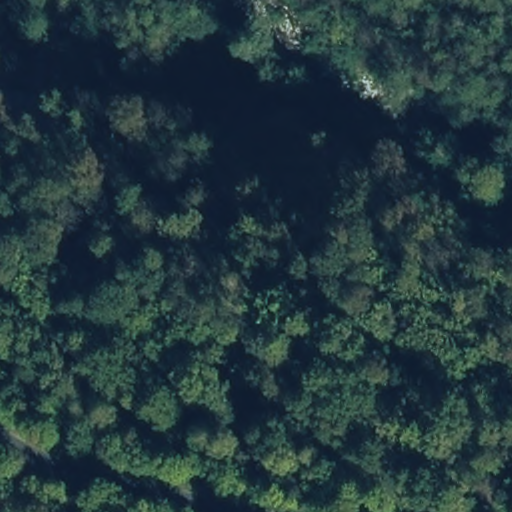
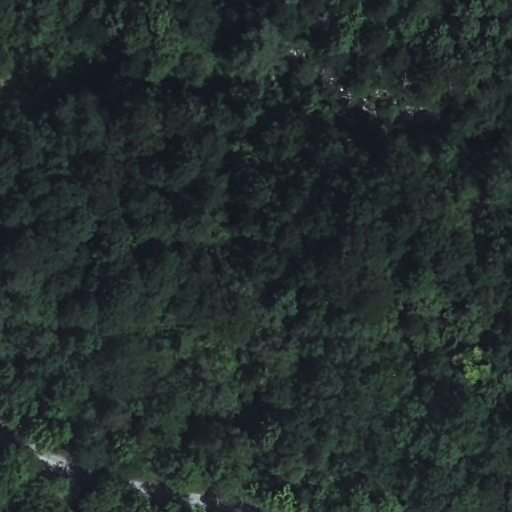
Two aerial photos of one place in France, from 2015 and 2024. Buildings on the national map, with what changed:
[]

